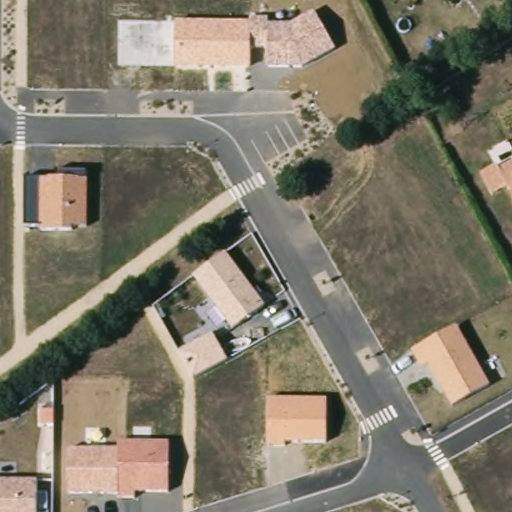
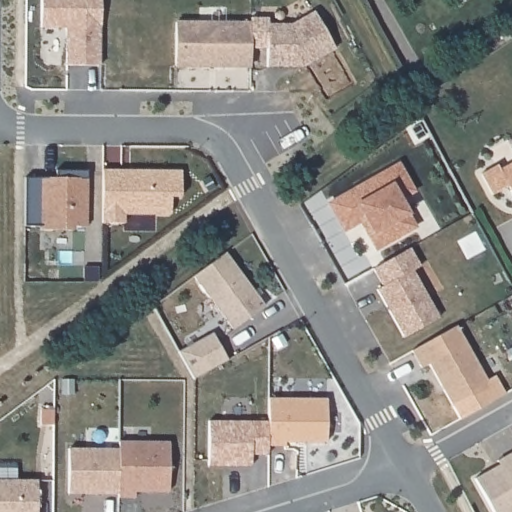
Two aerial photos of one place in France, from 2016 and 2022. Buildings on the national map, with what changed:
new [(102,0),(101,68),(67,67),(68,26),(59,26),(59,30),(42,30),(42,0),(102,0)]
unchanged [(336,50),(300,69),(268,68),(267,49),(252,48),(251,23),(251,18),(267,20),(267,25),(290,24),(313,11),(336,50)]
unchanged [(252,48),(251,69),(175,68),(175,21),(251,23),(252,48)]
unchanged [(494,196),(482,175),(498,166),(500,172),(512,165),(512,193),(509,188),(494,196)]
new [(346,234),(330,207),(400,167),(416,194),(401,202),(417,229),(378,252),(370,237),(362,224),(346,234)]
new [(104,169),(181,170),(180,197),(171,197),(171,214),(126,212),(125,224),(102,225),(104,169)]
unchanged [(25,179),(55,179),(56,170),(87,170),(87,226),(72,226),(72,232),(40,232),(39,228),(24,229),(25,179)]
new [(412,251),(422,270),(415,274),(441,321),(406,341),(379,293),(385,289),(375,272),(412,251)]
unchanged [(192,277),(226,253),(265,308),(232,330),(192,277)]
unchanged [(428,364),(421,368),(413,350),(457,326),(489,387),(453,407),(428,364)]
unchanged [(180,352),(215,334),(229,361),(193,378),(180,352)]
unchanged [(326,443),(285,443),(285,446),(268,445),(267,400),(326,399),(326,443)]
new [(268,445),(268,456),(250,456),(251,466),(208,466),(209,421),(267,421),(268,445)]
unchanged [(170,492),(135,492),(135,500),(119,501),(119,493),(118,449),(118,441),(169,442),(170,492)]
unchanged [(69,493),(67,448),(118,449),(119,493),(69,493)]
new [(506,461),(512,458),(512,512),(493,512),(476,483),(501,469),(500,465),(506,461)]
unchanged [(38,481),(38,512),(0,512),(0,480),(38,481)]

